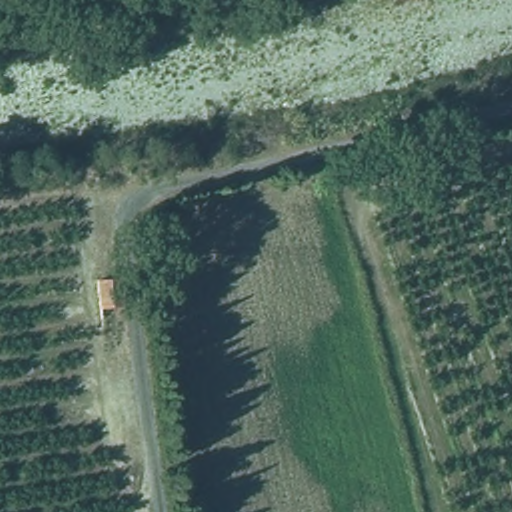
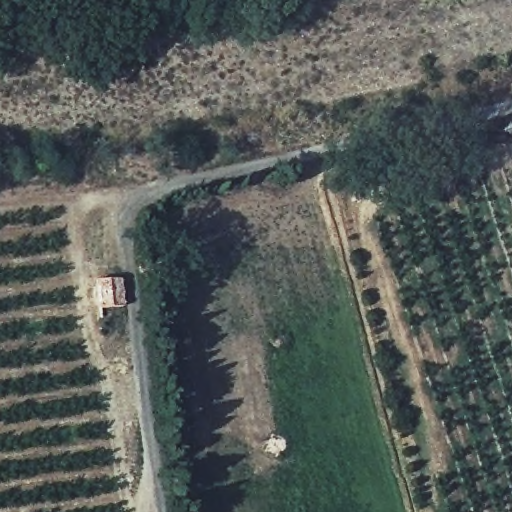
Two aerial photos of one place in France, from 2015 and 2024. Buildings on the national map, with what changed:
unchanged [(125,311),(98,313),(95,286),(122,283),(125,311)]

